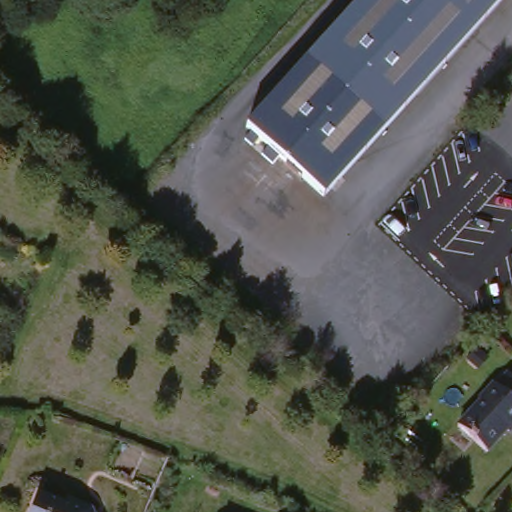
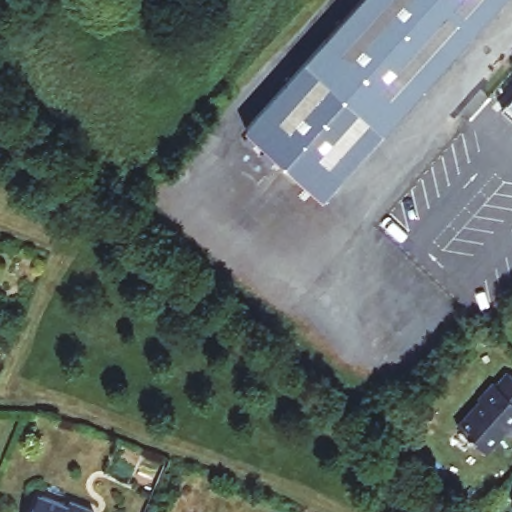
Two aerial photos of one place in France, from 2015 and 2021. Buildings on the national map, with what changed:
unchanged [(321,203),(244,133),(307,62),(362,0),(501,0),(385,131),(321,203)]
unchanged [(492,451),(463,425),(486,399),(485,398),(499,382),(502,385),(512,374),(512,429),(492,451)]
unchanged [(31,504),(35,506),(41,493),(64,503),(66,497),(87,506),(90,512),(28,512),(31,504)]

